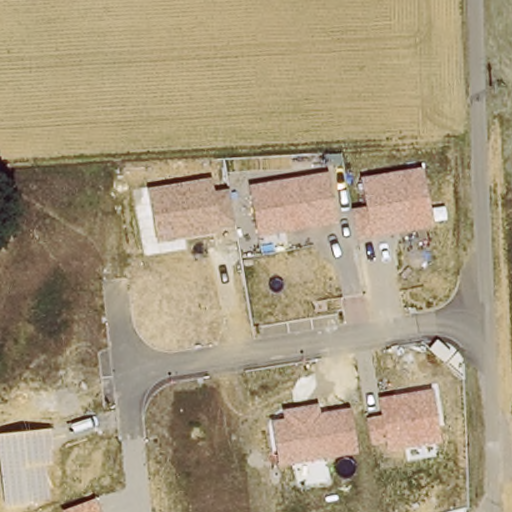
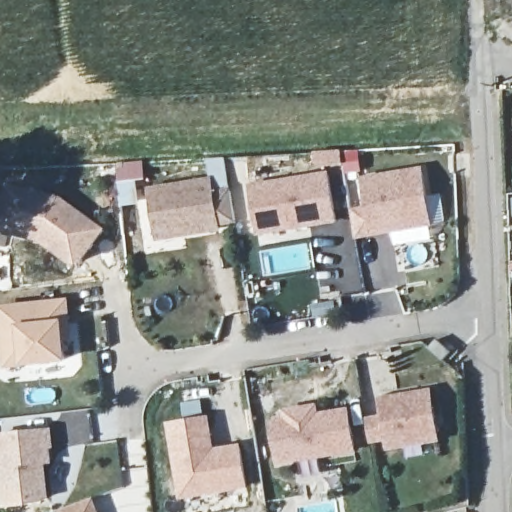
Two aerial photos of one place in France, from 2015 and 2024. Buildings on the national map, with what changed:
new [(341,150),(343,163),(316,168),(313,153),(341,150)]
unchanged [(365,207),(361,178),(423,167),(432,227),(357,238),(351,209),(365,207)]
unchanged [(328,172),(337,222),(258,236),(250,185),(328,172)]
unchanged [(212,177),(215,192),(230,189),(235,223),(220,226),(220,231),(158,241),(150,187),(212,177)]
new [(105,230),(78,269),(40,243),(0,233),(0,215),(7,184),(60,197),(105,230)]
new [(72,340),(65,341),(67,362),(22,367),(5,370),(0,317),(0,306),(69,299),(72,340)]
unchanged [(432,389),(440,442),(387,451),(385,442),(372,444),(367,417),(382,414),(380,397),(432,389)]
unchanged [(284,418),(282,410),(317,403),(318,411),(348,406),(356,453),(277,465),(270,420),(284,418)]
new [(212,416),(215,450),(241,445),(248,490),(181,500),(167,425),(212,416)]
unchanged [(0,436),(50,429),(53,449),(50,450),(52,464),(45,465),(48,498),(3,507),(0,474),(0,436)]
unchanged [(94,498),(99,512),(60,512),(60,511),(94,498)]

